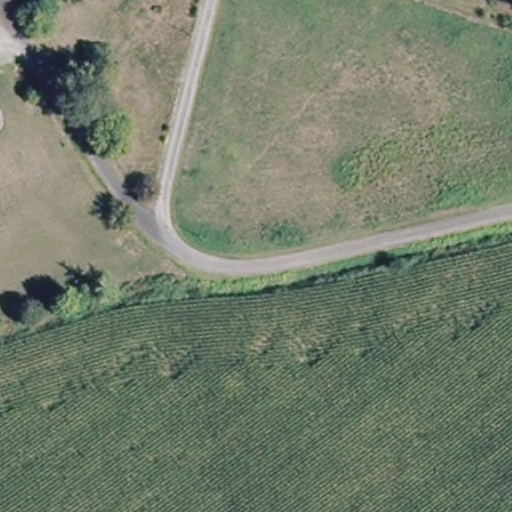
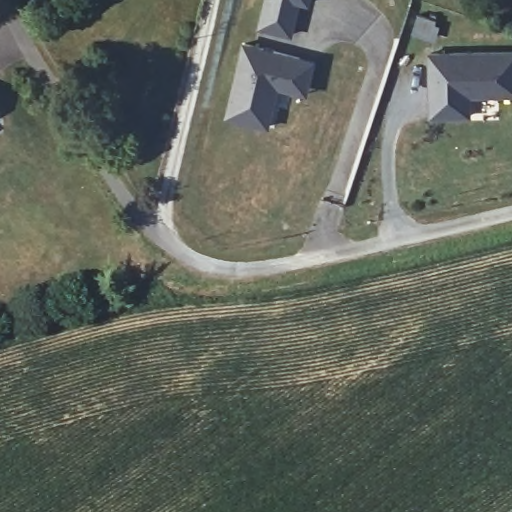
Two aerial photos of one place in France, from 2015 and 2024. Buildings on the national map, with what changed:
new [(261,26),(266,0),(299,0),(293,33),(261,26)]
new [(299,0),(310,0),(310,1),(299,0)]
new [(310,92),(278,86),(270,126),(228,115),(243,44),(315,60),(310,92)]
new [(471,116),(430,115),(428,53),(512,52),(512,96),(470,96),(471,116)]

